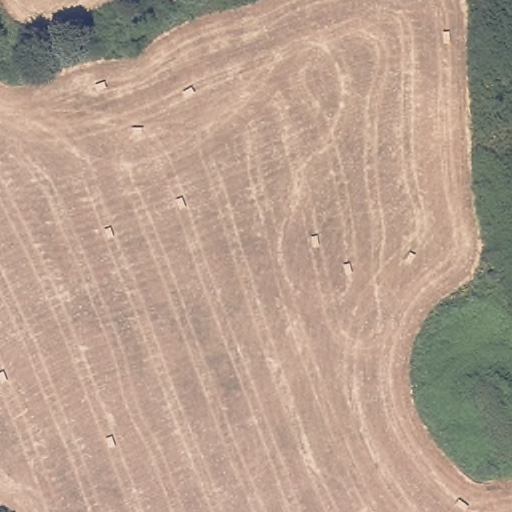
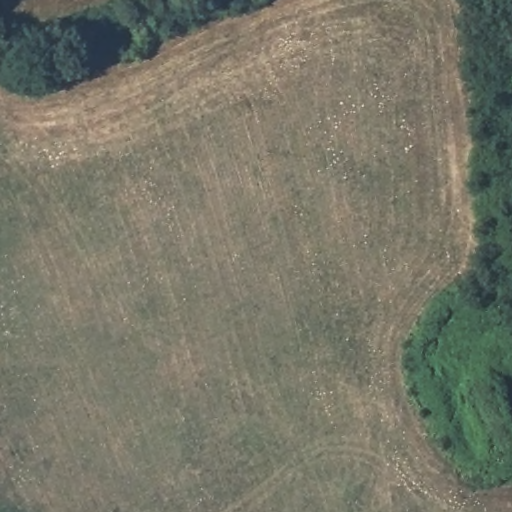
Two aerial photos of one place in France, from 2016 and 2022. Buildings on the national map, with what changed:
[]

